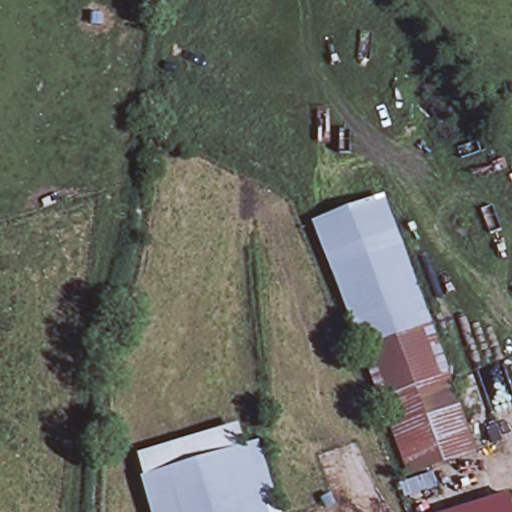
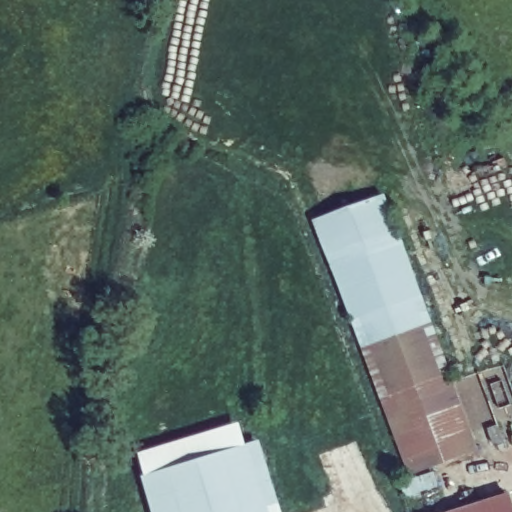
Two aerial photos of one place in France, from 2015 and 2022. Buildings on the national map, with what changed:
unchanged [(476,447),(409,471),(332,266),(316,222),(383,198),(400,242),(476,447)]
unchanged [(247,450),(146,479),(141,459),(241,430),(247,450)]
unchanged [(146,479),(247,450),(265,512),(155,512),(146,479)]
unchanged [(508,512),(484,512),(481,504),(503,498),(508,512)]
unchanged [(481,504),(484,512),(450,512),(481,504)]

